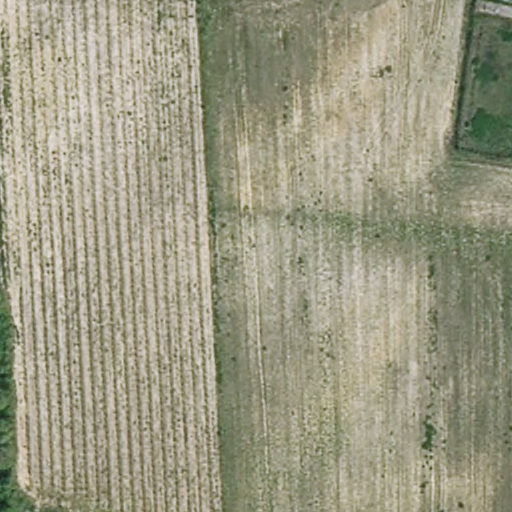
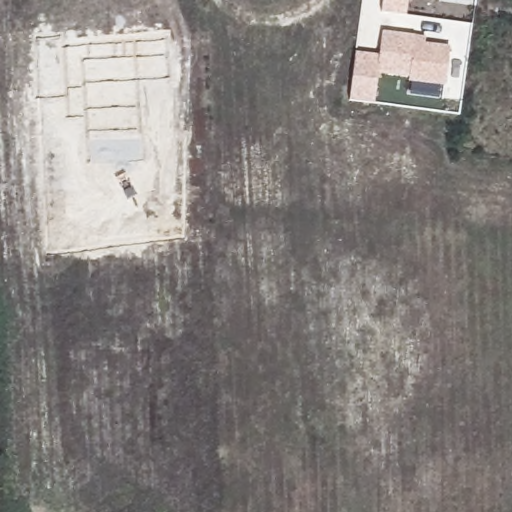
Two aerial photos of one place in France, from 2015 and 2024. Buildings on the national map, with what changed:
new [(379,12),(381,0),(407,0),(405,17),(379,12)]
new [(379,58),(382,34),(415,37),(425,38),(424,45),(449,47),(445,84),(410,81),(410,77),(378,73),(375,106),(350,102),(355,55),(379,58)]

